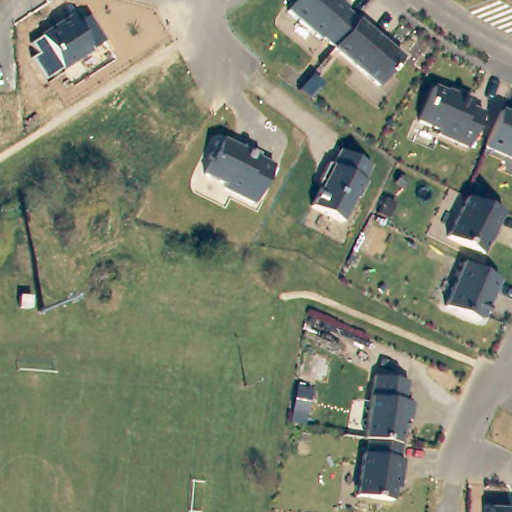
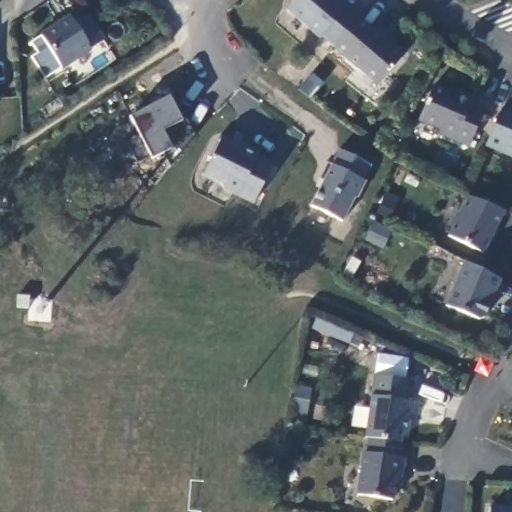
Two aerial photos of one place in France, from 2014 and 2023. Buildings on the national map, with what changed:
unchanged [(294,13),(305,0),(337,0),(405,59),(380,89),(294,13)]
unchanged [(50,79),(35,59),(42,54),(36,44),(74,18),(80,25),(91,17),(107,42),(50,79)]
unchanged [(474,146),(440,135),(441,129),(426,122),(437,86),(474,100),(474,106),(483,110),(474,146)]
new [(173,164),(169,148),(150,157),(138,162),(126,142),(140,136),(130,116),(171,98),(175,95),(196,134),(173,164)]
unchanged [(506,110),(512,112),(512,156),(493,150),(506,110)]
unchanged [(258,203),(210,177),(226,141),(273,163),(258,203)]
unchanged [(347,223),(315,209),(341,151),(370,165),(347,223)]
unchanged [(487,254),(454,238),(473,199),(506,214),(487,254)]
unchanged [(484,322),(450,308),(467,265),(501,279),(484,322)]
unchanged [(357,497),(374,376),(405,380),(404,399),(412,399),(410,419),(404,419),(398,458),(400,459),(394,501),(357,497)]
unchanged [(493,506),(512,507),(512,512),(493,512),(493,506)]

